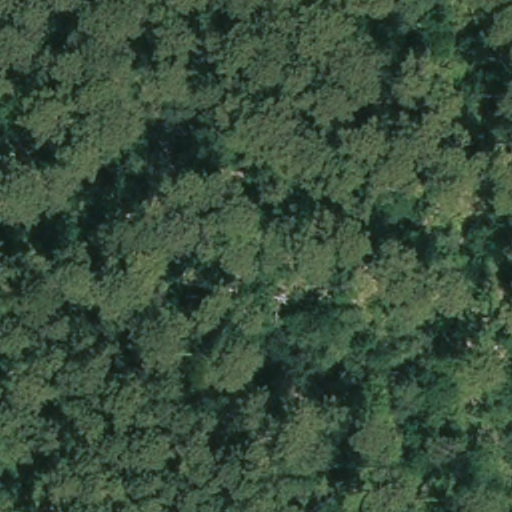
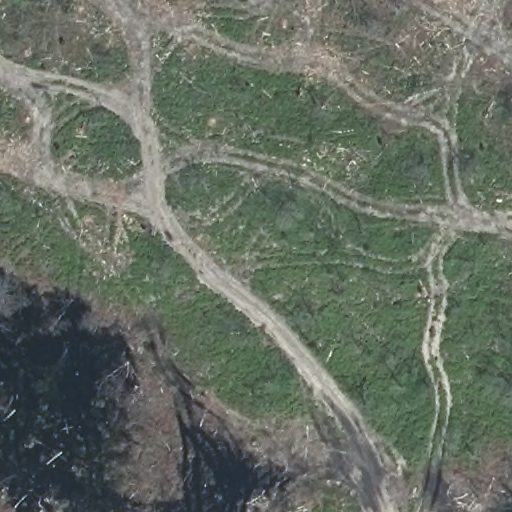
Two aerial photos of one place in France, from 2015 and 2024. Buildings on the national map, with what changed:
[]

